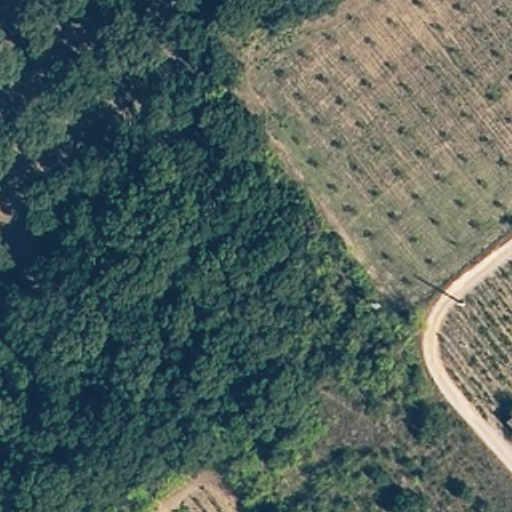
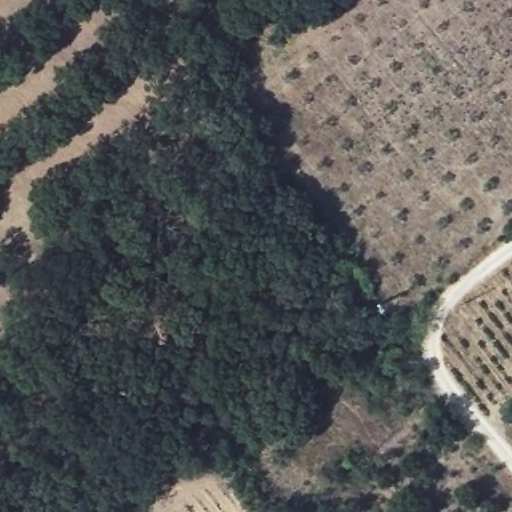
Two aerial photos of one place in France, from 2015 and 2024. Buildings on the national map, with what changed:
unchanged [(512,420),(512,429),(508,423),(512,420)]

